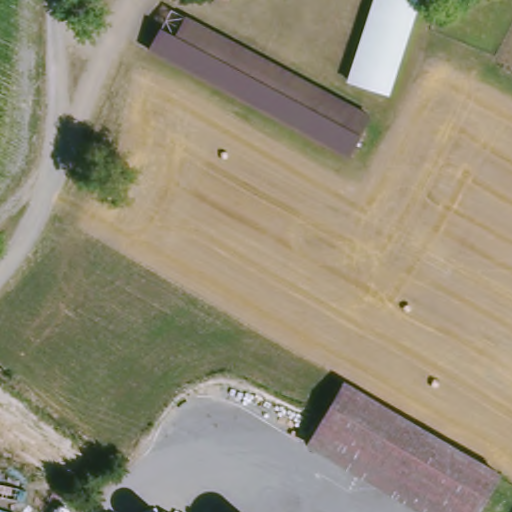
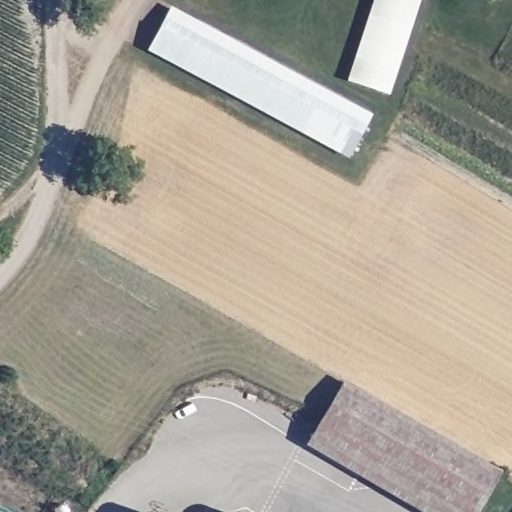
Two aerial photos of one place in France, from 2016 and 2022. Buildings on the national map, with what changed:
unchanged [(357,82),(382,0),(415,0),(386,91),(357,82)]
unchanged [(177,14),(374,119),(353,157),(156,51),(177,14)]
unchanged [(347,385),(501,476),(479,512),(419,512),(308,447),(347,385)]

